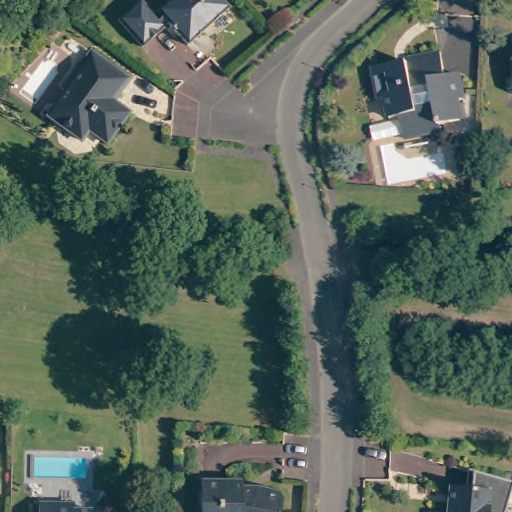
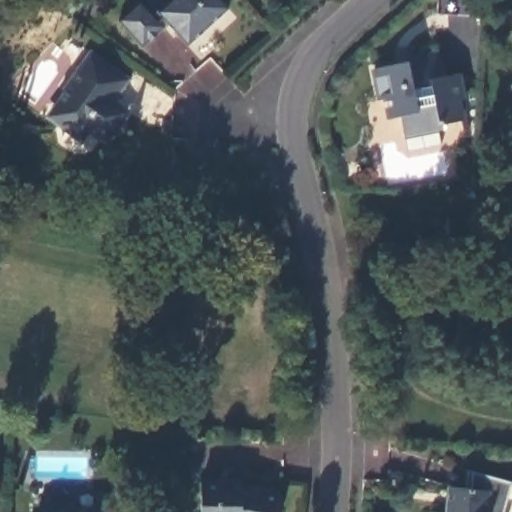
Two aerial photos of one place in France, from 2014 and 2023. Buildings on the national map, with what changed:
unchanged [(172,0),(218,0),(227,11),(186,48),(166,26),(164,28),(163,32),(141,49),(116,23),(139,4),(152,17),(172,0)]
unchanged [(437,53),(442,79),(456,76),(459,102),(455,103),(457,123),(435,127),(437,133),(400,139),(396,119),(386,120),(382,99),(376,100),(371,69),(393,64),(404,62),(403,60),(437,53)]
unchanged [(134,82),(122,97),(116,93),(111,100),(126,109),(126,117),(111,139),(105,139),(90,130),(84,141),(63,126),(68,117),(56,108),(67,92),(64,89),(80,65),(85,68),(95,54),(134,82)]
unchanged [(512,482),(512,486),(502,512),(444,512),(445,502),(446,487),(456,488),(470,489),(474,473),(512,482)]
unchanged [(245,488),(263,489),(263,487),(281,491),(285,496),(282,512),(204,512),(205,477),(245,478),(245,488)]
unchanged [(75,504),(94,504),(93,512),(40,512),(40,498),(75,498),(75,504)]

